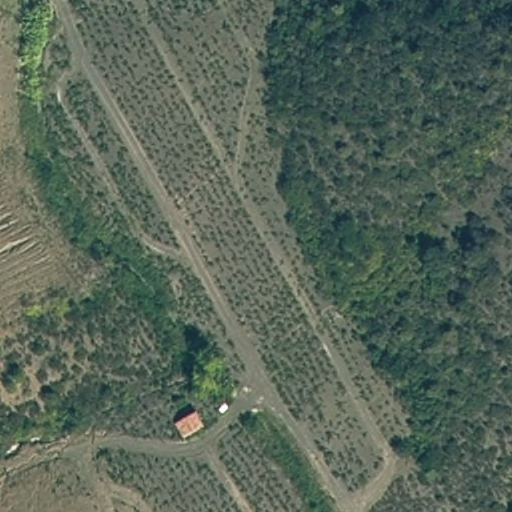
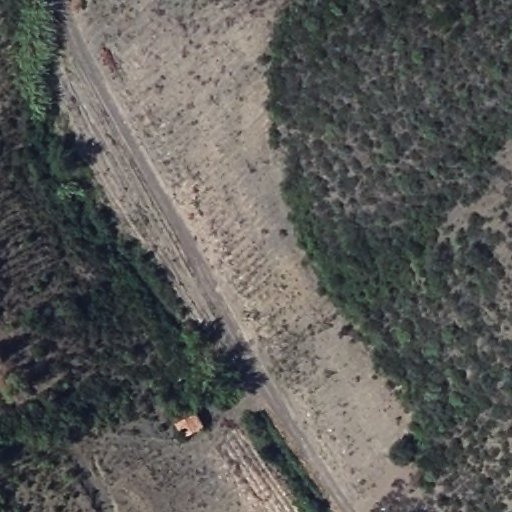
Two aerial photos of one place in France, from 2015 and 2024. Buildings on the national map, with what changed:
unchanged [(207,423),(183,436),(175,419),(198,405),(207,423)]

